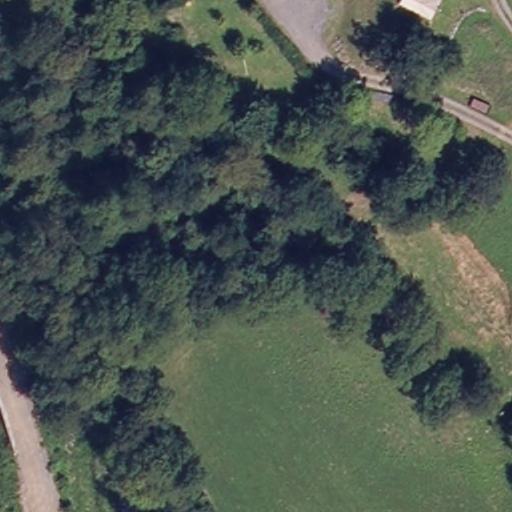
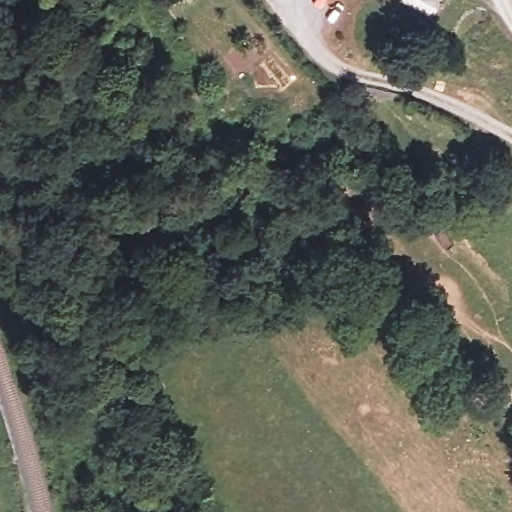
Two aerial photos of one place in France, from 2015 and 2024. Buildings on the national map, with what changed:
unchanged [(376,94),(354,87),(360,78),(379,86),(376,94)]

